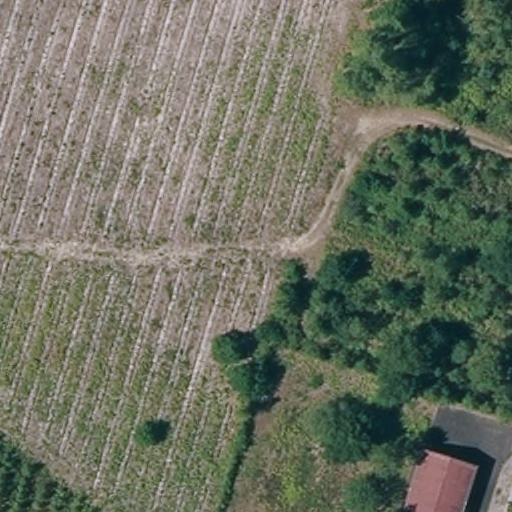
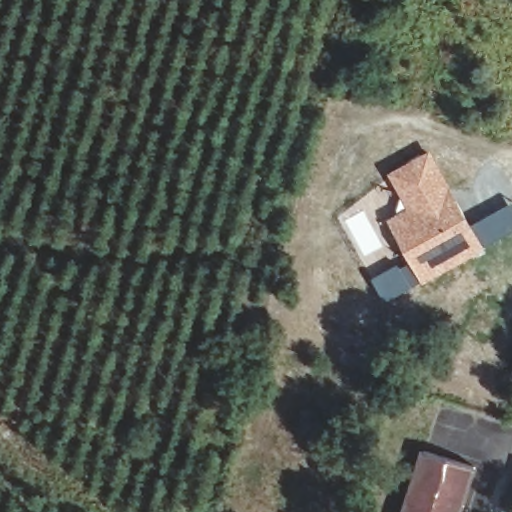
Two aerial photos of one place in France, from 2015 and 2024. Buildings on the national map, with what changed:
new [(407,208),(410,206),(391,171),(395,169),(429,150),(449,188),(445,190),(448,195),(452,193),(468,224),(512,199),(512,228),(496,237),(422,277),(411,258),(389,217),(407,208)]
unchanged [(423,453),(474,469),(460,512),(403,512),(423,453)]

